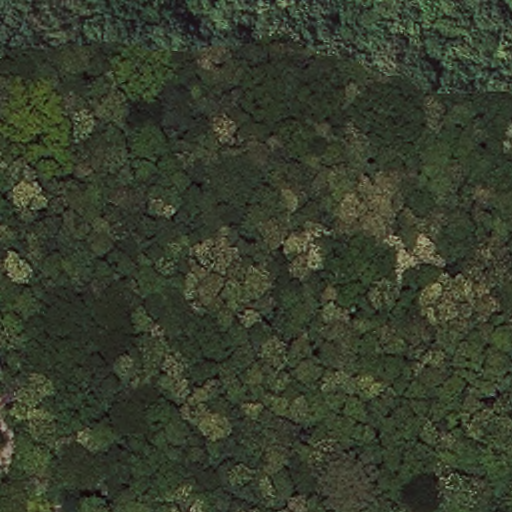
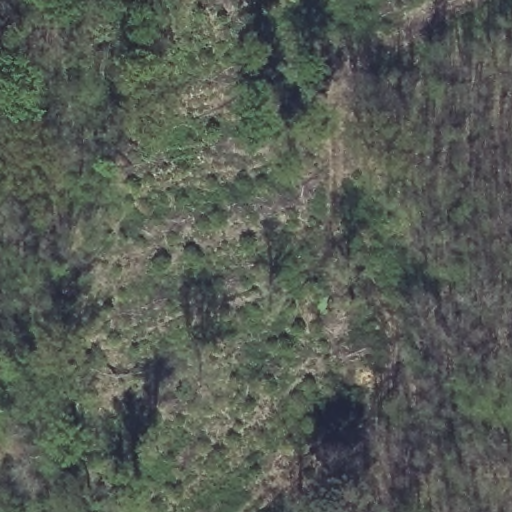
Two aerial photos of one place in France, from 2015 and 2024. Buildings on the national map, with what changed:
[]

